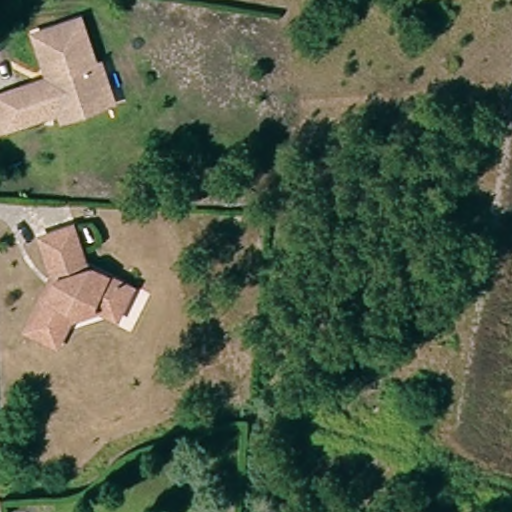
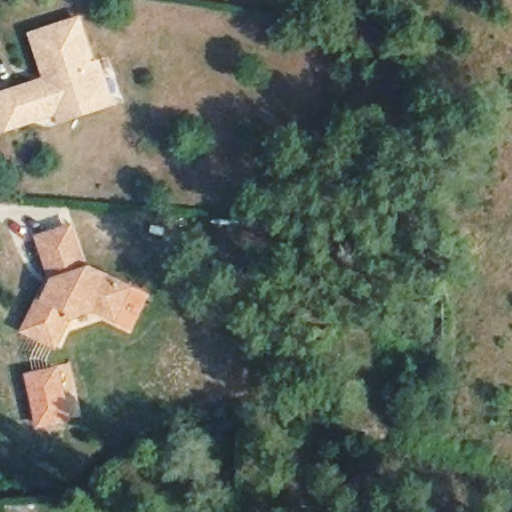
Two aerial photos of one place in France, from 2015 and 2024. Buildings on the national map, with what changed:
unchanged [(13,94),(32,88),(42,74),(37,64),(32,66),(23,34),(67,19),(84,62),(88,62),(94,77),(102,100),(54,118),(51,107),(4,125),(0,127),(0,93),(12,88),(13,94)]
unchanged [(66,224),(77,260),(124,283),(110,312),(86,300),(67,307),(51,339),(21,324),(37,291),(43,293),(49,281),(32,235),(66,224)]
new [(69,362),(81,418),(36,429),(24,373),(69,362)]

